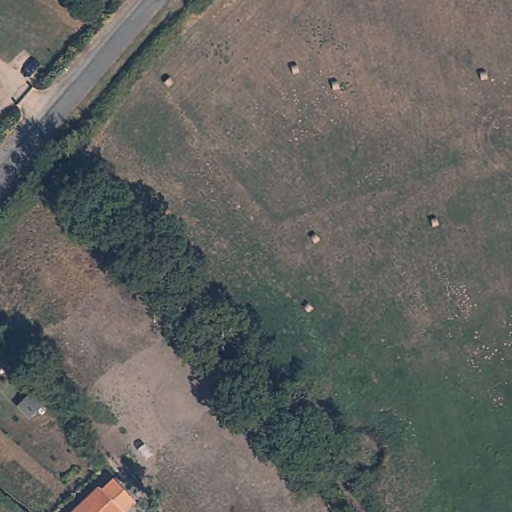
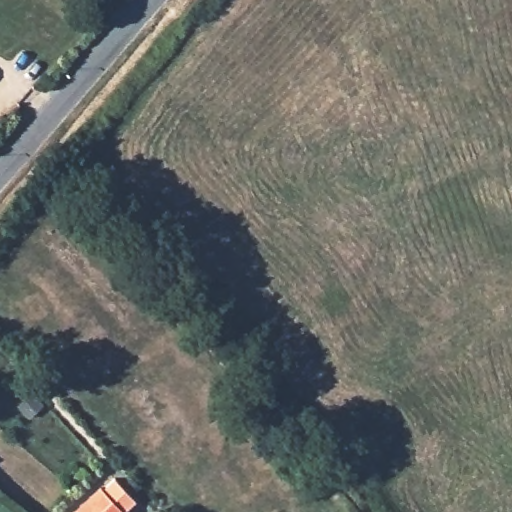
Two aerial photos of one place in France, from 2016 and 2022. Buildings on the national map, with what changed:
unchanged [(91,496),(104,483),(113,493),(126,507),(121,512),(71,512),(89,494),(91,496)]

